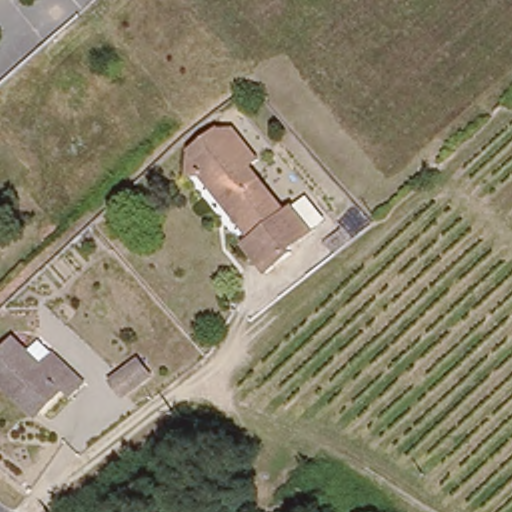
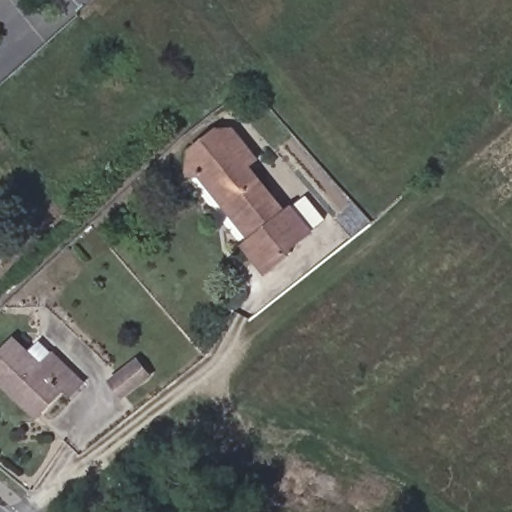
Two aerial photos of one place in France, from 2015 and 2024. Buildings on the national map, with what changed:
unchanged [(296,205),(316,227),(293,247),(295,250),(271,269),(248,243),(255,236),(204,179),(191,177),(193,153),(217,130),(232,131),(257,159),(249,166),(289,210),(296,205)]
unchanged [(0,379),(0,354),(13,340),(42,366),(54,354),(84,381),(72,393),(63,385),(43,406),(38,412),(14,391),(0,379)]
unchanged [(109,383),(137,363),(147,376),(120,395),(109,383)]

